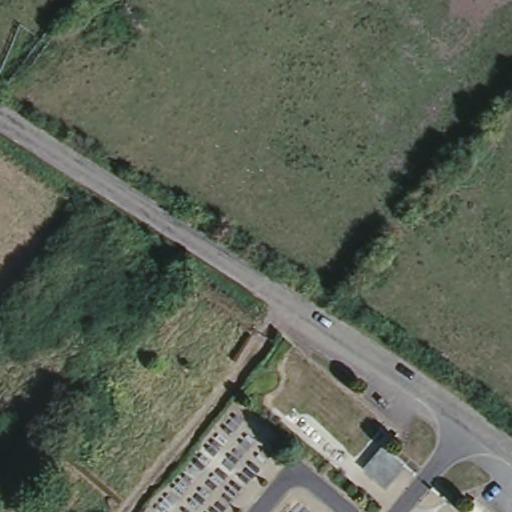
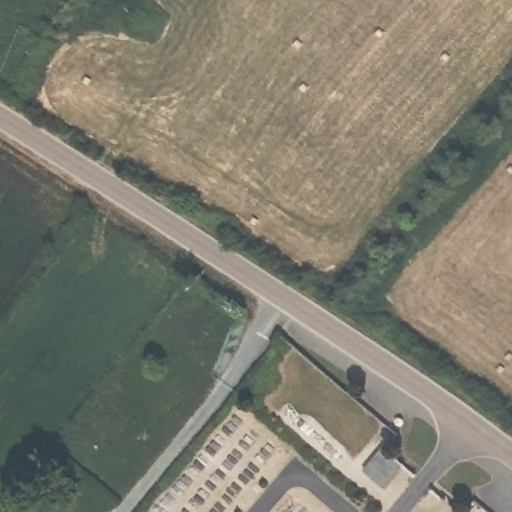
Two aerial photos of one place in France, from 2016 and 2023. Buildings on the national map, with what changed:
unchanged [(418,470),(391,495),(362,470),(385,448),(418,470)]

